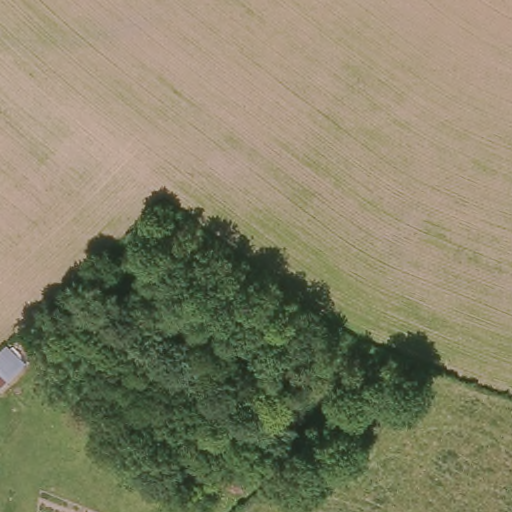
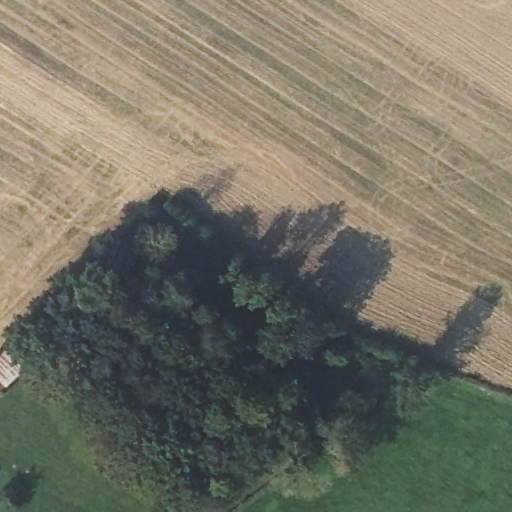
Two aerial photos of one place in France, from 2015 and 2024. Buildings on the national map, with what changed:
unchanged [(25,372),(0,396),(0,356),(5,351),(25,372)]

